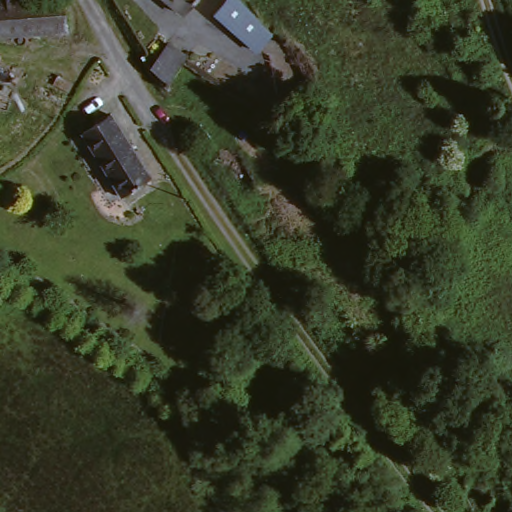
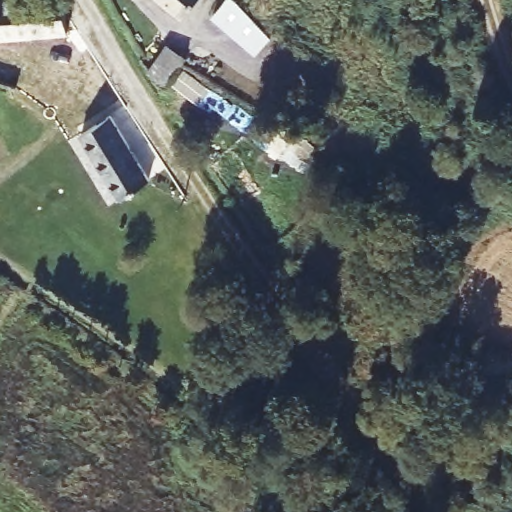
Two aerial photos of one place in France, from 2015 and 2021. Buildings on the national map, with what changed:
unchanged [(44,0),(45,0),(68,0),(70,26),(0,36),(0,5),(2,5),(44,0)]
unchanged [(184,12),(172,0),(196,0),(184,12)]
unchanged [(228,0),(244,0),(267,22),(274,30),(256,49),(219,11),(228,0)]
unchanged [(168,47),(185,61),(184,64),(172,77),(163,87),(167,72),(167,70),(156,62),(168,47)]
unchanged [(94,125),(116,113),(146,169),(152,180),(122,199),(83,132),(94,125)]
unchanged [(236,165),(259,206),(237,220),(213,179),(236,165)]
unchanged [(484,488),(493,491),(485,512),(471,512),(456,506),(465,481),(484,488)]

